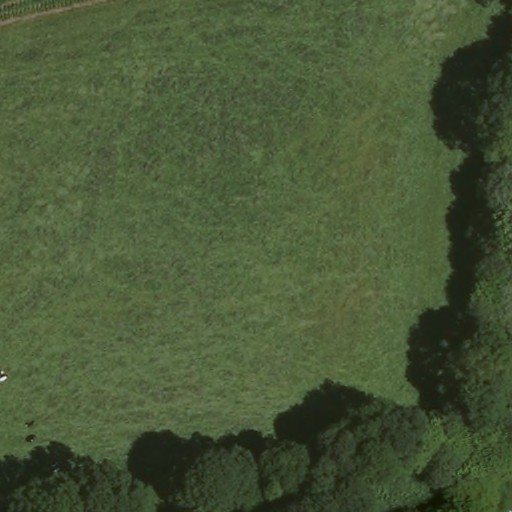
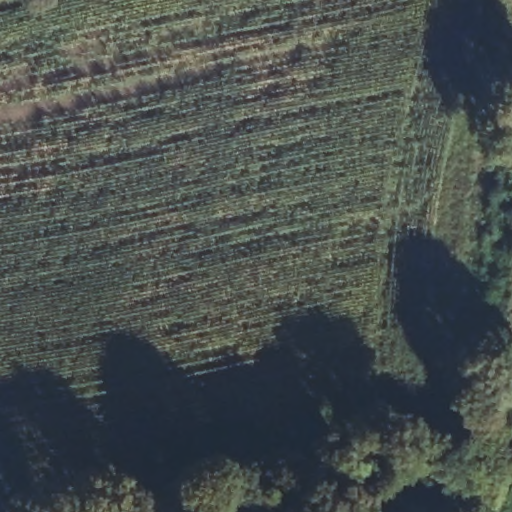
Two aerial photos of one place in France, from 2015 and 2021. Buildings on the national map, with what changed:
[]

